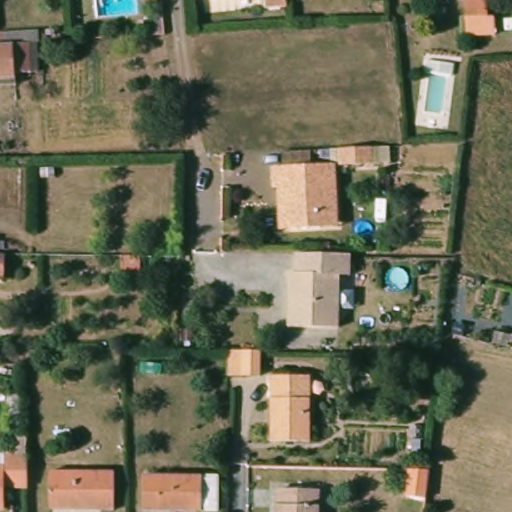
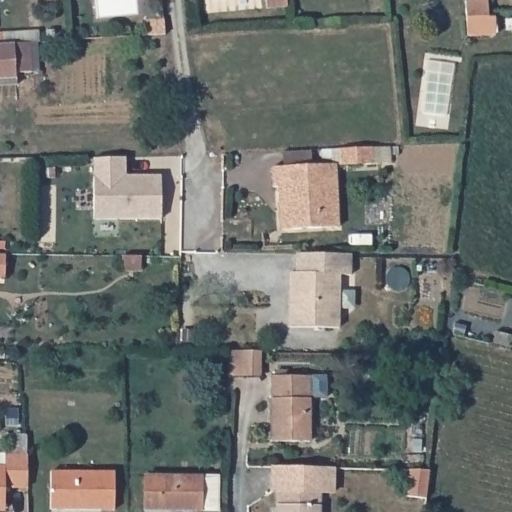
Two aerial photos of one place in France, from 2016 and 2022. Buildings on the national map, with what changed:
unchanged [(265,0),(271,0),(265,1),(265,0)]
unchanged [(462,5),(485,2),(487,19),(491,19),(492,37),(464,39),(463,20),(464,20),(462,5)]
unchanged [(0,28),(18,27),(19,37),(22,37),(39,36),(41,67),(24,67),(24,72),(25,79),(0,81),(0,28)]
new [(427,61),(455,64),(448,117),(420,114),(427,61)]
unchanged [(377,149),(377,166),(347,167),(347,150),(377,149)]
new [(125,157),(125,176),(139,176),(161,176),(161,219),(94,219),(94,157),(125,157)]
unchanged [(326,231),(298,231),(284,232),(284,207),(284,188),(278,188),(278,167),(343,167),(343,217),(343,231),(326,231)]
unchanged [(9,246),(0,246),(0,237),(9,237),(9,246)]
unchanged [(8,250),(7,253),(7,274),(0,274),(0,249),(1,250),(8,250)]
unchanged [(129,267),(130,255),(130,251),(148,251),(148,255),(148,267),(129,267)]
unchanged [(349,277),(338,277),(337,330),(287,328),(288,292),(289,274),(295,274),(295,255),(350,257),(349,277)]
unchanged [(262,348),(273,348),(272,373),(255,373),(255,348),(262,348)]
unchanged [(312,372),(313,437),(274,437),(273,372),(312,372)]
unchanged [(5,455),(30,456),(30,487),(5,487),(5,509),(0,509),(0,468),(5,468),(5,455)]
unchanged [(119,467),(119,505),(56,504),(56,466),(119,467)]
unchanged [(207,477),(208,510),(152,510),(152,477),(207,477)]
unchanged [(323,487),(324,512),(280,512),(280,487),(323,487)]

